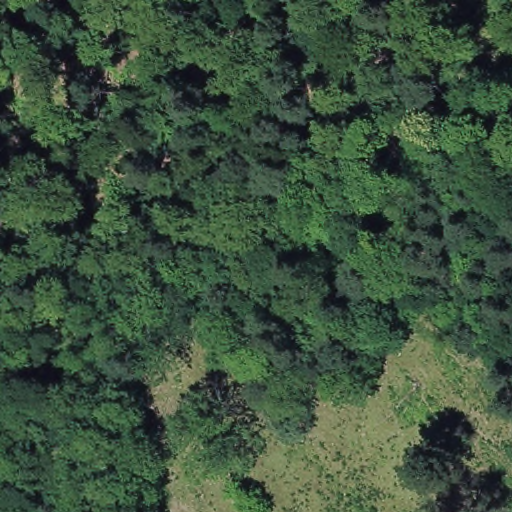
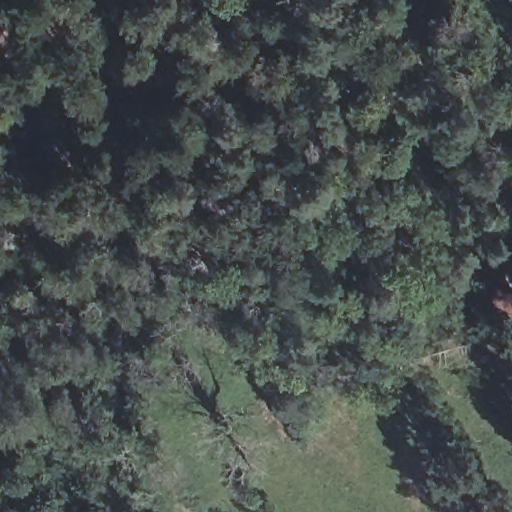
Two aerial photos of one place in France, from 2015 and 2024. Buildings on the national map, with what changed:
[]

